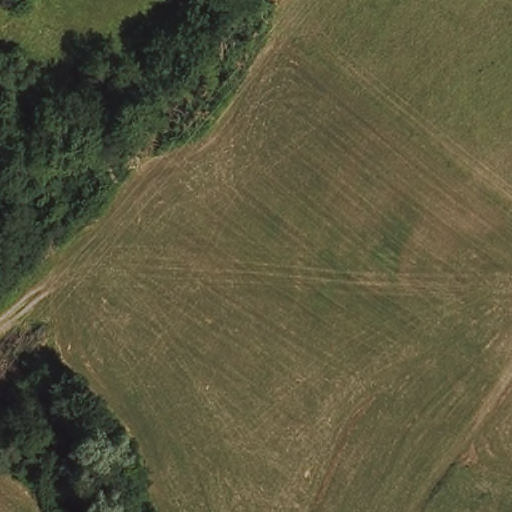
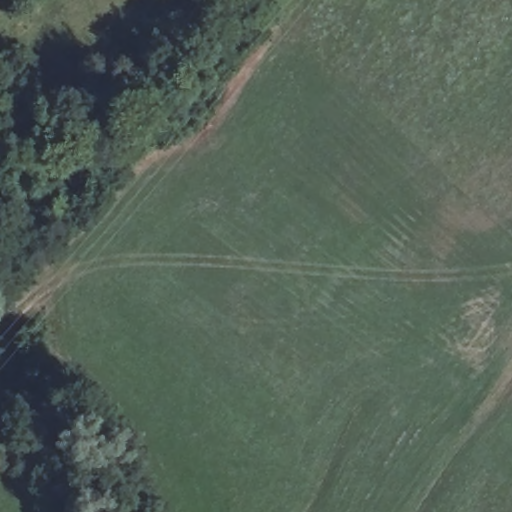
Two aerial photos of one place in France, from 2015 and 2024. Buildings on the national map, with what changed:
[]

